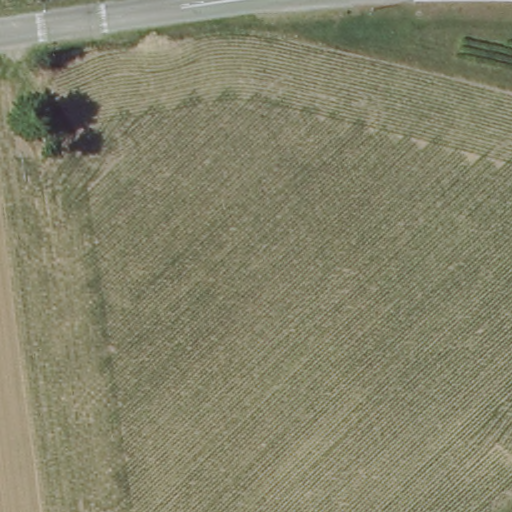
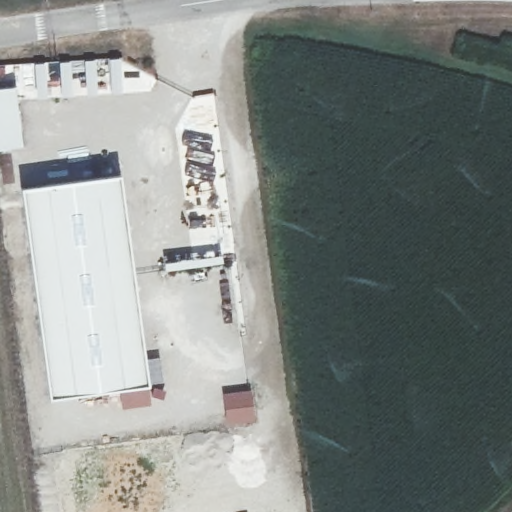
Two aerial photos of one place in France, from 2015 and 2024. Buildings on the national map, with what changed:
new [(23,149),(0,151),(0,91),(15,90),(23,149)]
new [(127,175),(151,388),(56,398),(30,186),(127,175)]

